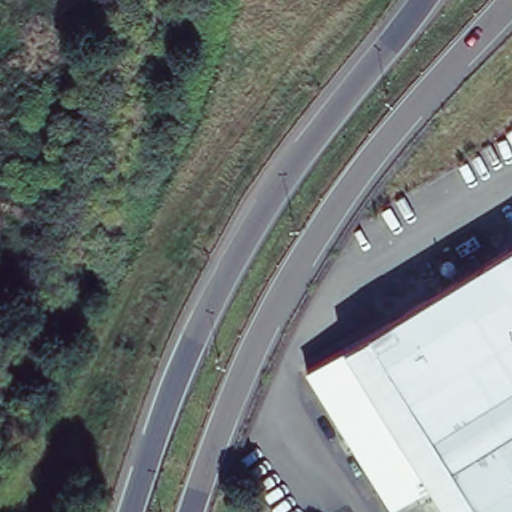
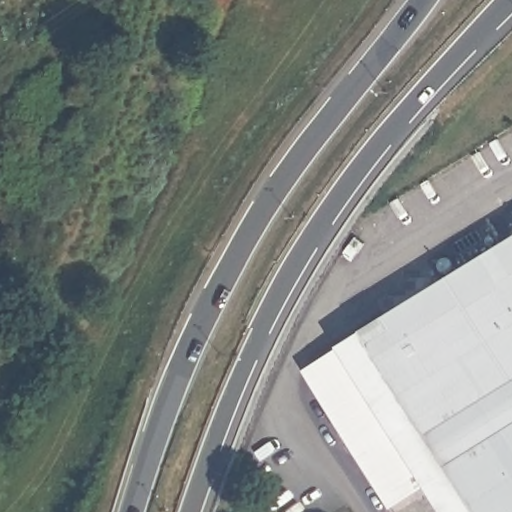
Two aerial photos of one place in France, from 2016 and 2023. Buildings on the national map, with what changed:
unchanged [(512,246),(512,512),(410,512),(321,366),(512,246)]

